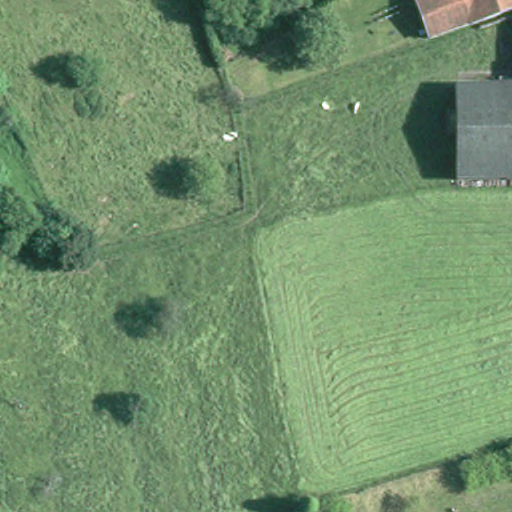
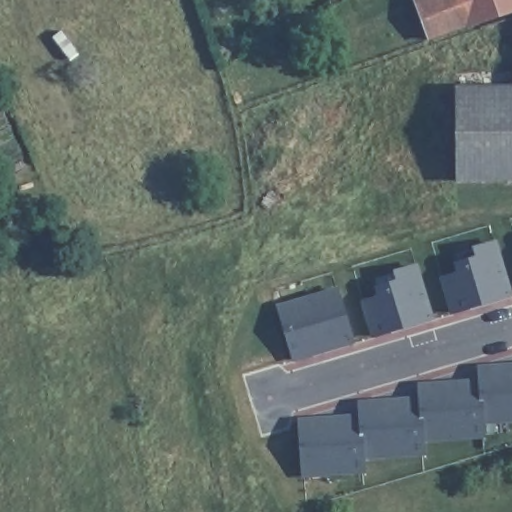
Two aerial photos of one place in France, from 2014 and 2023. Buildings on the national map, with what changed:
unchanged [(512,9),(427,40),(414,0),(512,0),(512,9)]
unchanged [(453,87),(512,87),(512,181),(454,181),(453,87)]
new [(457,316),(446,282),(463,277),(460,267),(481,261),(478,251),(498,245),(512,291),(512,299),(475,310),(457,316)]
new [(396,335),(378,341),(366,307),(384,301),(381,292),(402,285),(399,276),(419,270),(434,318),(435,322),(396,335)]
new [(316,359),(298,365),(281,312),(299,306),(303,316),(323,310),(319,300),(339,294),(354,342),(356,346),(316,359)]
new [(483,375),(483,370),(512,368),(512,423),(508,423),(487,425),(483,375)]
new [(427,443),(423,392),(423,388),(464,385),(484,384),(488,438),(469,440),(448,441),(427,443)]
new [(362,406),(404,403),(424,401),(428,456),(409,458),(408,448),(387,450),(388,460),(366,461),(364,420),(363,410),(362,406)]
new [(367,475),(348,476),(347,466),(326,467),(328,477),(306,479),(303,429),(303,424),(344,421),(363,420),(367,475)]

